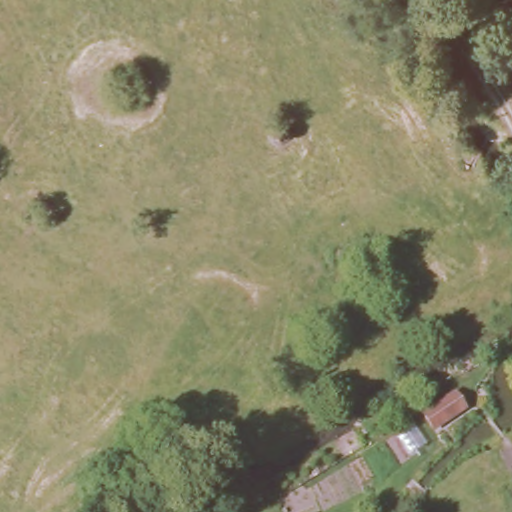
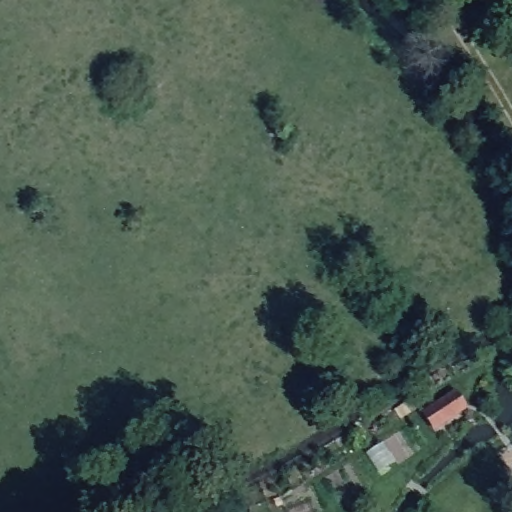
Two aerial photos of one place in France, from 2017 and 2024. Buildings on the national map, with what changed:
unchanged [(465,421),(438,439),(426,421),(453,402),(465,421)]

